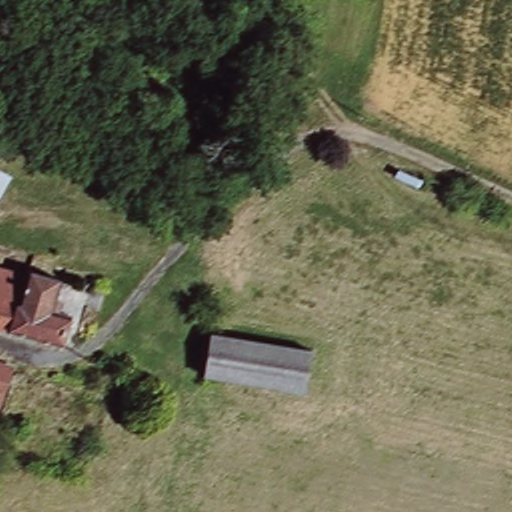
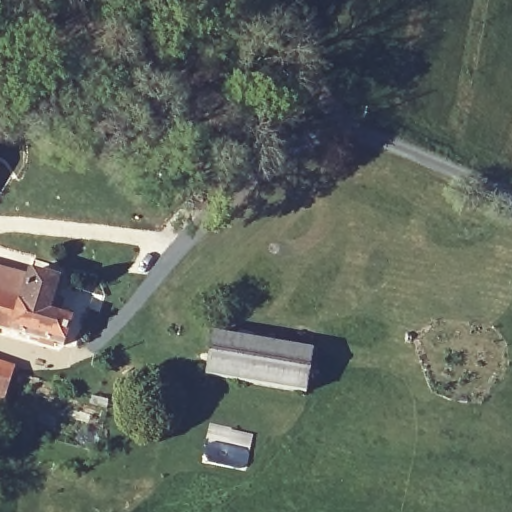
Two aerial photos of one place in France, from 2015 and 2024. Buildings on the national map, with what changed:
unchanged [(29,266),(56,275),(51,293),(63,296),(59,310),(73,313),(64,341),(0,324),(0,268),(26,275),(29,266)]
unchanged [(211,332),(313,352),(303,390),(203,371),(211,332)]
unchanged [(0,414),(0,362),(13,366),(0,414)]

